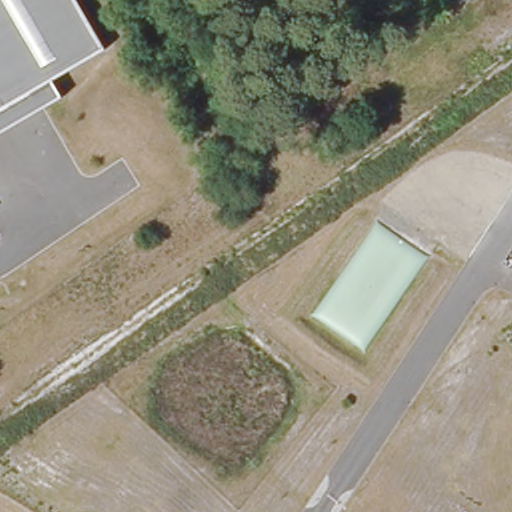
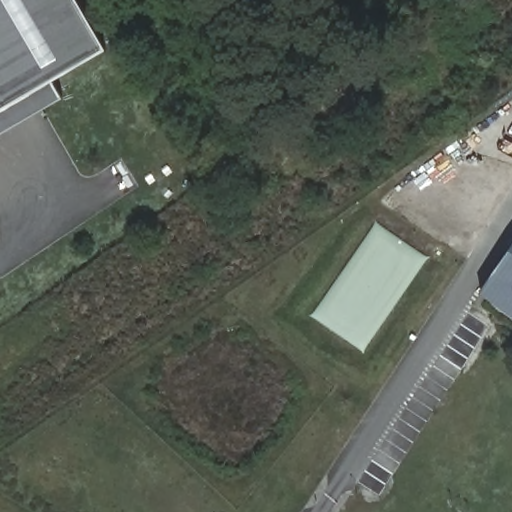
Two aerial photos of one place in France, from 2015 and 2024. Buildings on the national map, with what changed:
unchanged [(106,50),(53,79),(62,96),(0,133),(0,0),(77,0),(106,50)]
new [(512,245),(512,313),(480,291),(512,245)]

